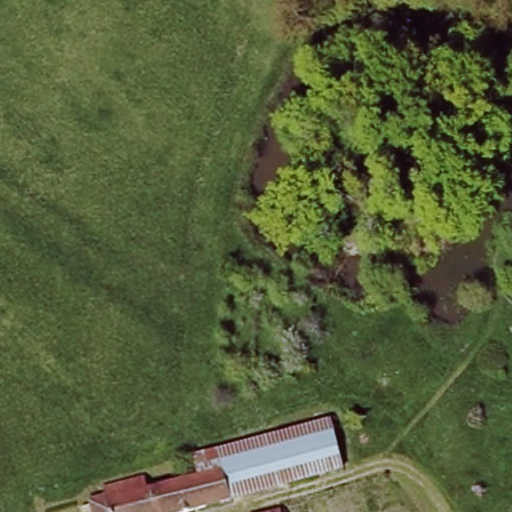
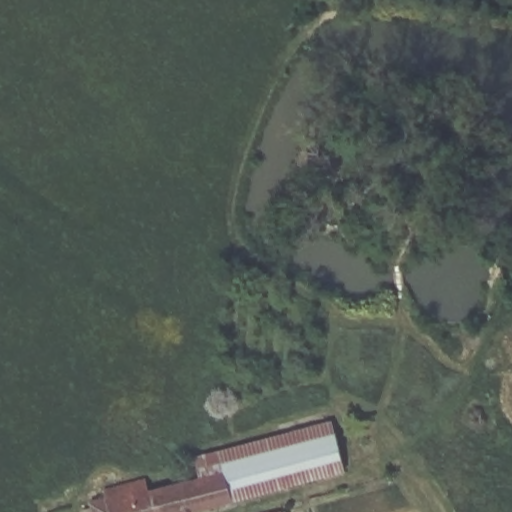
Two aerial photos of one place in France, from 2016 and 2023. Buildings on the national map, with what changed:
unchanged [(133,480),(137,492),(218,471),(213,454),(237,447),(302,428),(322,422),(330,449),(337,475),(228,503),(195,512),(88,512),(86,504),(102,500),(98,489),(133,480)]

